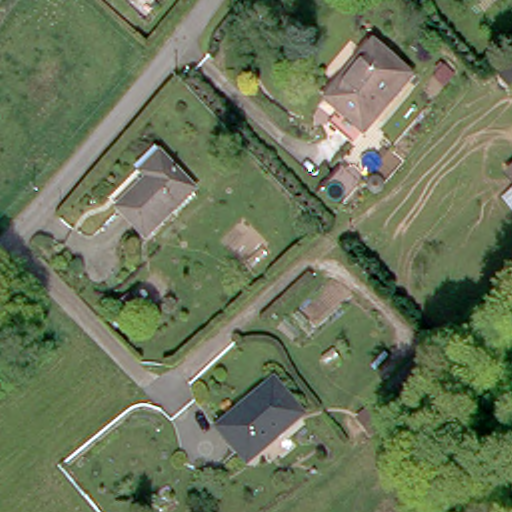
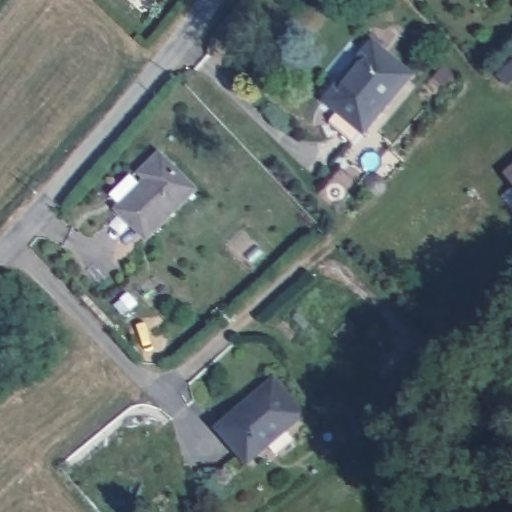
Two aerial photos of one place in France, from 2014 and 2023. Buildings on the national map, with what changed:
unchanged [(402,69),(356,125),(319,94),(365,39),(402,69)]
unchanged [(143,232),(114,203),(144,173),(137,166),(156,149),(190,184),(143,232)]
unchanged [(511,173),(512,173),(512,175),(511,173)]
unchanged [(404,405),(391,387),(421,356),(437,372),(404,405)]
unchanged [(300,413),(244,459),(216,427),(272,380),(300,413)]

